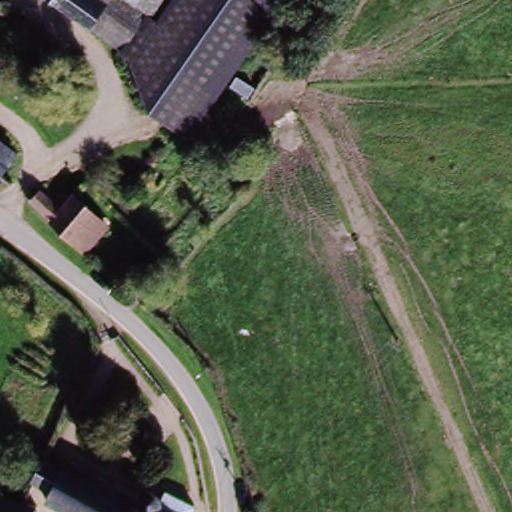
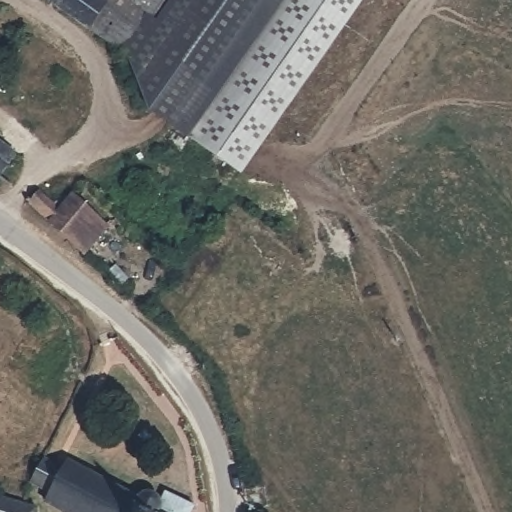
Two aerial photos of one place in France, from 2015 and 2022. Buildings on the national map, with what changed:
unchanged [(114,9),(97,33),(54,0),(103,0),(114,9)]
unchanged [(147,113),(124,59),(115,47),(97,33),(114,9),(103,0),(128,0),(153,21),(169,0),(285,0),(206,101),(178,135),(147,113)]
unchanged [(153,21),(128,0),(169,0),(153,21)]
new [(206,101),(285,0),(368,0),(243,177),(181,131),(206,101)]
unchanged [(0,172),(0,145),(11,157),(0,172)]
unchanged [(103,223),(76,253),(46,227),(20,206),(32,191),(58,213),(73,195),(103,223)]
unchanged [(43,502),(46,496),(46,495),(38,491),(48,472),(49,469),(53,462),(63,467),(70,455),(83,465),(89,459),(101,468),(98,474),(107,480),(113,473),(127,482),(127,488),(136,494),(153,490),(159,492),(163,499),(185,512),(58,512),(58,511),(43,502)]
unchanged [(0,512),(0,497),(35,507),(41,508),(40,512),(0,512)]
demolished [(250,512),(253,502),(259,512),(250,512)]

